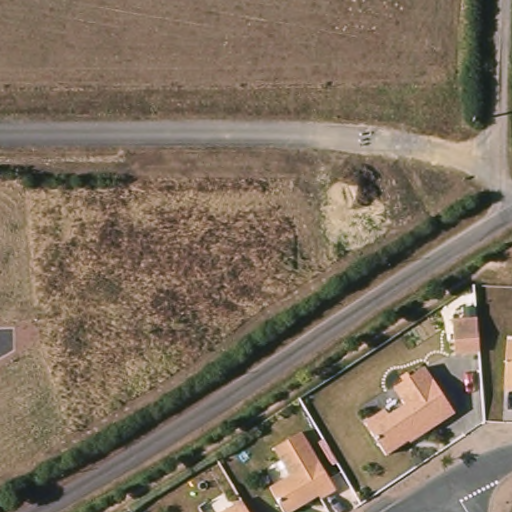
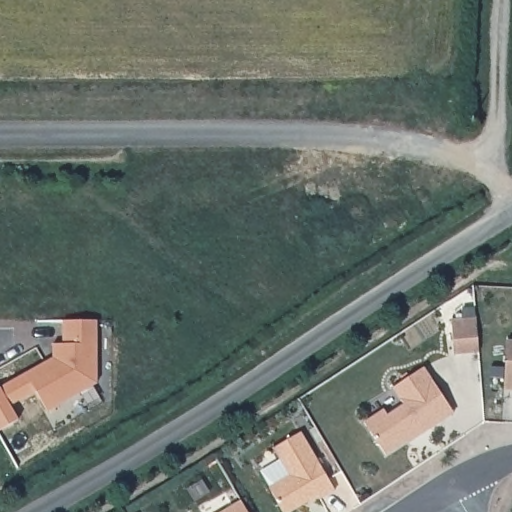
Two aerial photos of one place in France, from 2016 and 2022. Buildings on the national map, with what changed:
unchanged [(461,358),(459,323),(483,321),(486,356),(461,358)]
new [(50,364),(52,367),(58,363),(58,346),(68,346),(68,322),(101,322),(101,385),(52,413),(30,375),(50,364)]
unchanged [(437,426),(415,441),(413,439),(390,454),(367,420),(387,407),(391,413),(407,402),(396,385),(427,364),(451,401),(459,412),(437,426)]
unchanged [(512,376),(512,393),(511,393),(512,376)]
unchanged [(318,488),(306,495),(305,502),(288,512),(287,512),(271,485),(292,473),(276,446),(303,430),(337,487),(322,496),(318,488)]
unchanged [(251,512),(221,512),(243,499),(251,512)]

